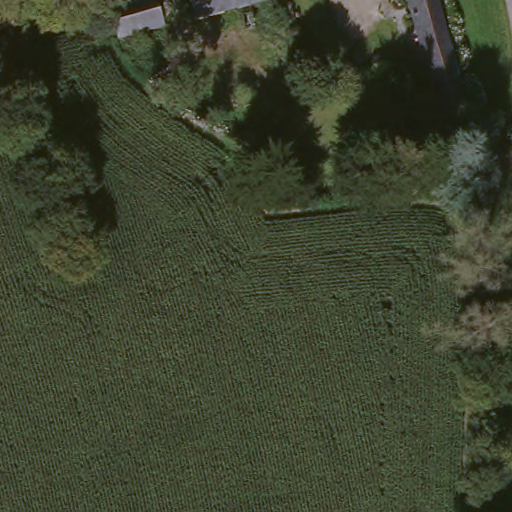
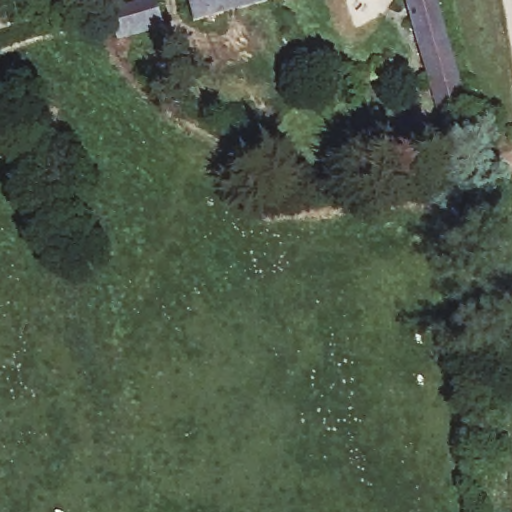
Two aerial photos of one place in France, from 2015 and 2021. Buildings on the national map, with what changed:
unchanged [(258,5),(186,26),(178,0),(292,0),(260,10),(258,5)]
unchanged [(433,126),(405,0),(440,0),(468,121),(465,121),(433,126)]
unchanged [(158,30),(113,43),(105,16),(142,6),(149,4),(158,30)]

